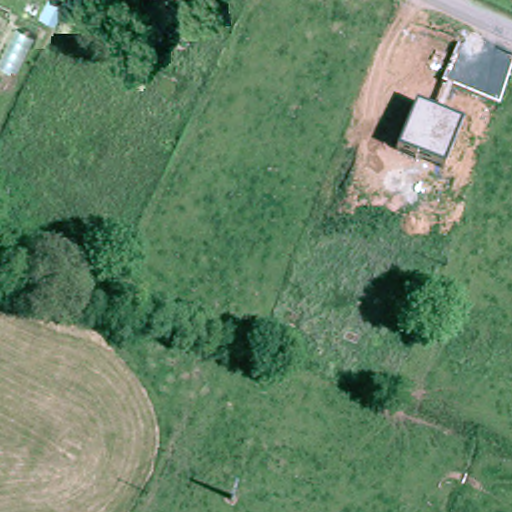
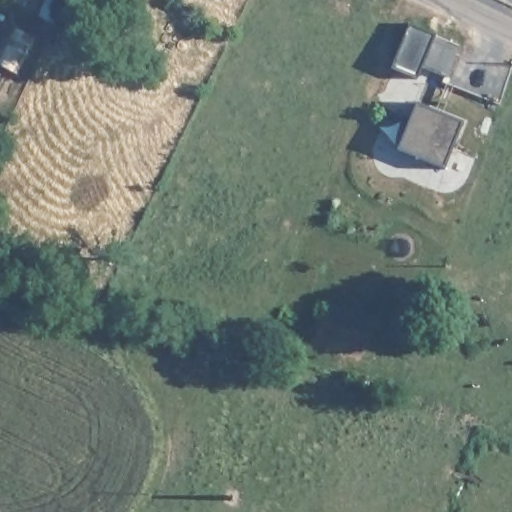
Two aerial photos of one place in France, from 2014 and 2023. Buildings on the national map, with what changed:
unchanged [(69,20),(56,15),(61,0),(66,0),(75,2),(69,20)]
new [(422,62),(417,76),(393,65),(410,24),(435,34),(459,44),(446,75),(422,62)]
unchanged [(414,104),(462,121),(445,166),(398,146),(414,104)]
unchanged [(12,142),(4,160),(0,159),(0,137),(12,142)]

